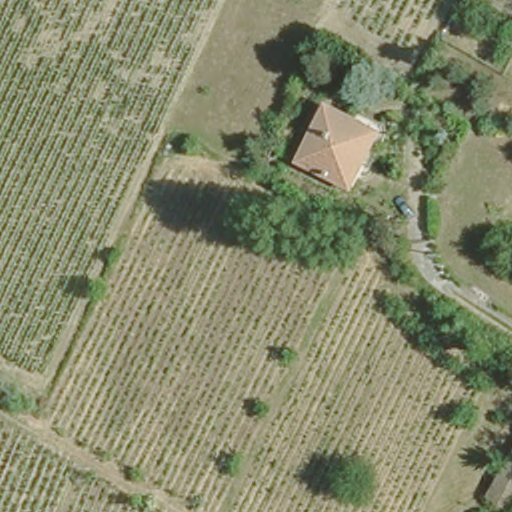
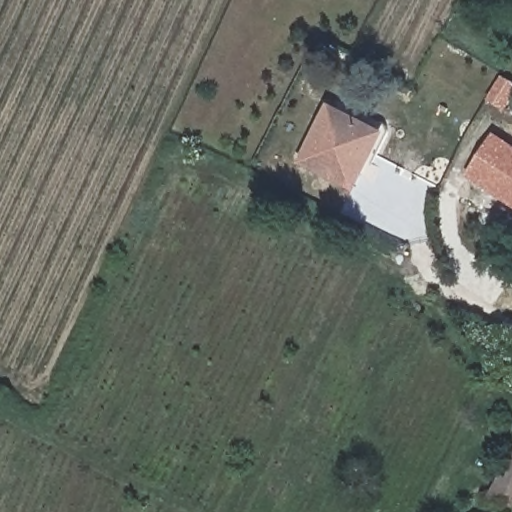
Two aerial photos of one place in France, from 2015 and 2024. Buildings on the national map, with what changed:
unchanged [(386,133),(377,151),(370,149),(359,169),(309,145),(327,107),(386,133)]
new [(512,143),(512,204),(469,176),(495,133),(512,143)]
unchanged [(512,461),(512,494),(497,487),(512,461)]

